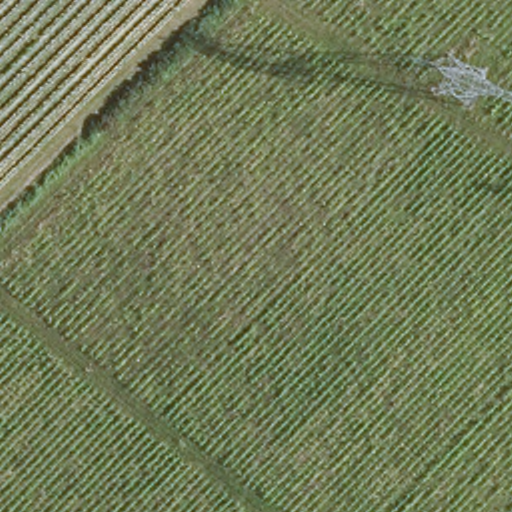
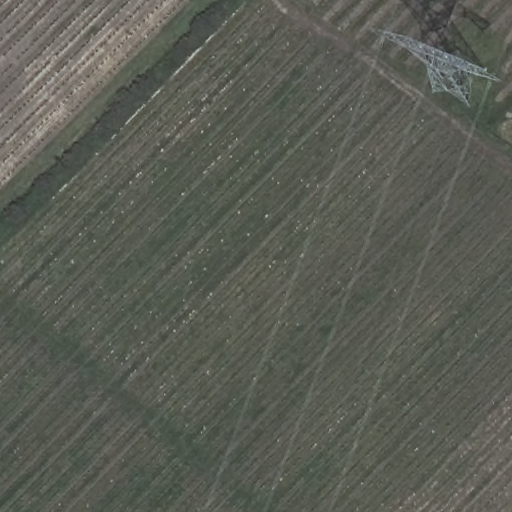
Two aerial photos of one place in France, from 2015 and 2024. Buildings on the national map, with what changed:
[]

